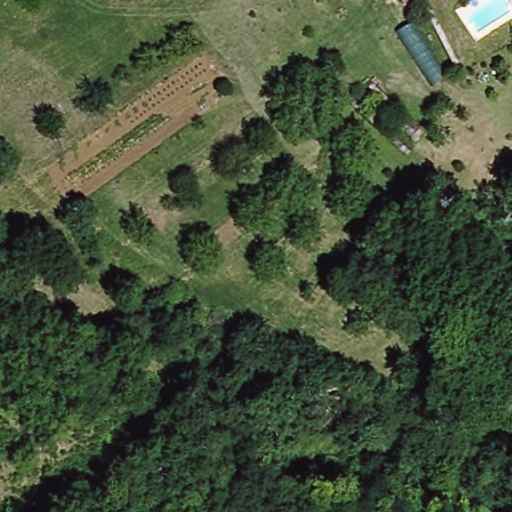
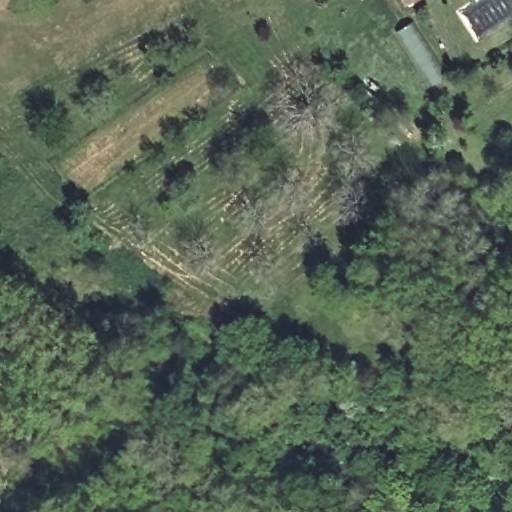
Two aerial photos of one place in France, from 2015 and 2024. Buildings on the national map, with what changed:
unchanged [(405,0),(416,0),(407,5),(405,0)]
unchanged [(416,0),(418,0),(416,1),(416,0)]

